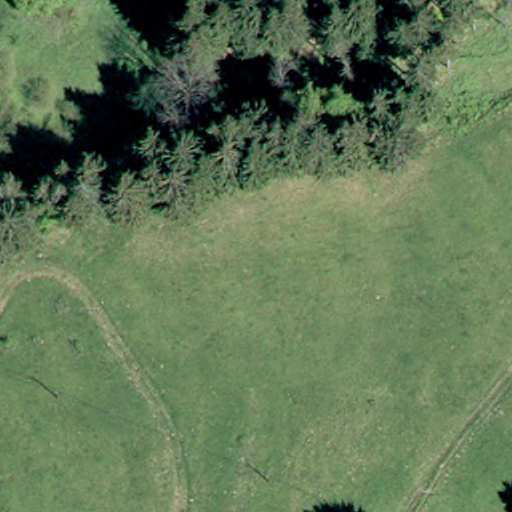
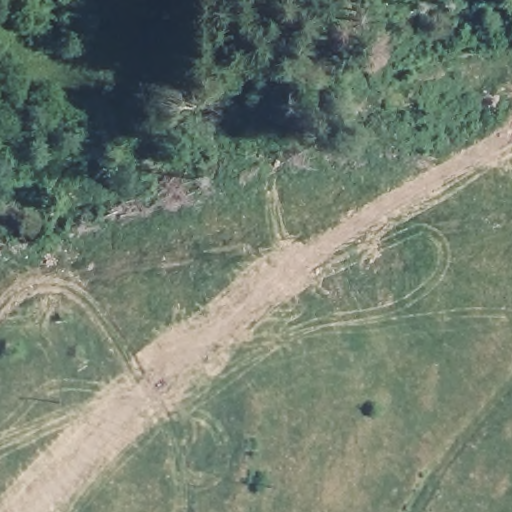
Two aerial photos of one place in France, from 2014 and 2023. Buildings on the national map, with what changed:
[]

